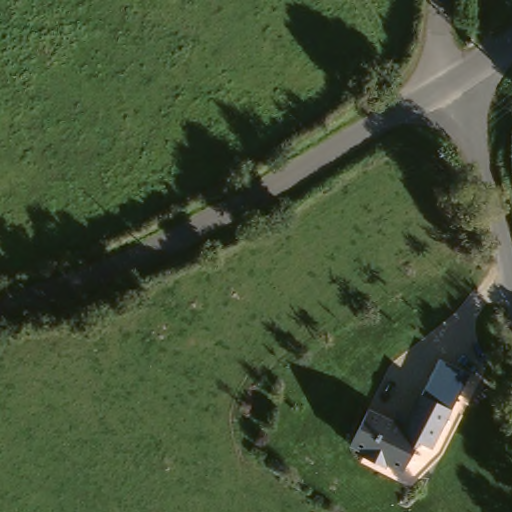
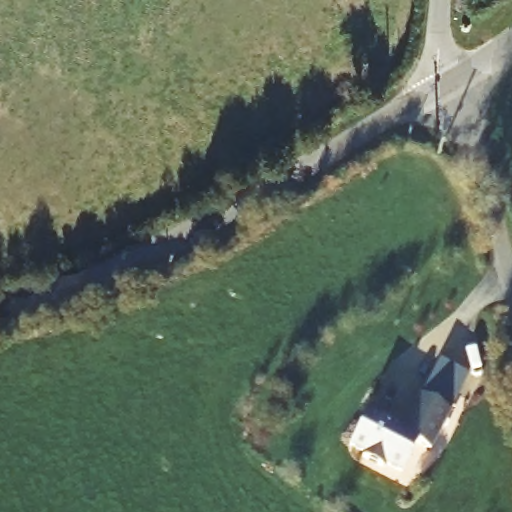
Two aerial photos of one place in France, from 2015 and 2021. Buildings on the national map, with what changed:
unchanged [(433,441),(419,435),(406,465),(388,457),(386,462),(366,453),(368,448),(352,441),(368,406),(404,421),(435,360),(469,377),(433,441)]

